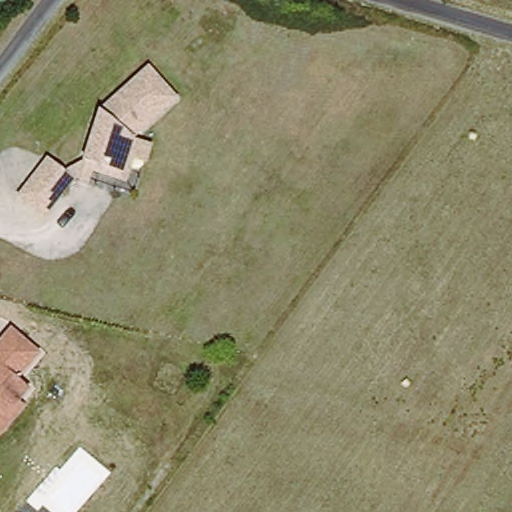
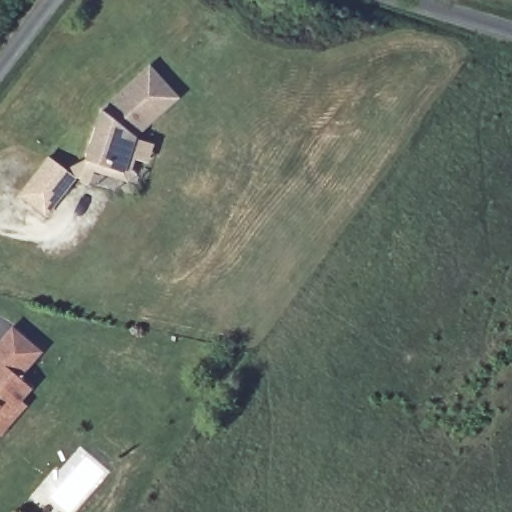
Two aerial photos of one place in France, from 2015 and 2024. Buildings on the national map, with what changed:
unchanged [(96,110),(146,65),(174,95),(131,134),(120,170),(81,156),(96,110)]
unchanged [(120,170),(131,134),(148,139),(131,193),(75,175),(81,156),(120,170)]
unchanged [(42,211),(17,190),(45,155),(70,175),(42,211)]
unchanged [(0,429),(0,338),(10,326),(38,351),(16,376),(27,386),(16,400),(22,405),(0,429)]

